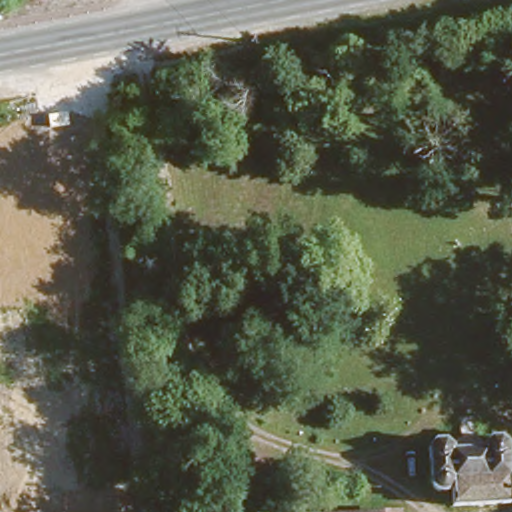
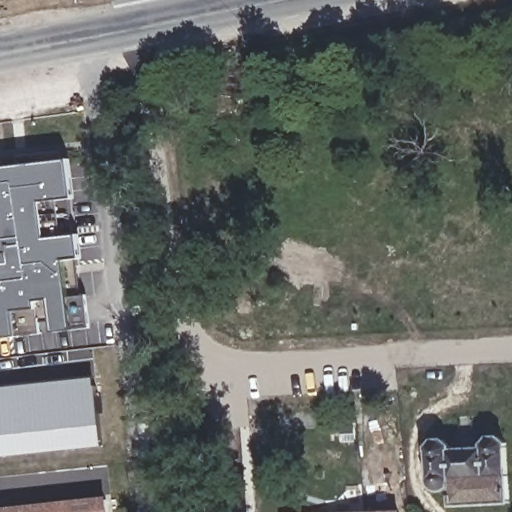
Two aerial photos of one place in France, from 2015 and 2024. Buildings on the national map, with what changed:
new [(64,161),(69,160),(74,196),(64,197),(69,237),(80,236),(82,258),(71,259),(79,297),(87,296),(91,328),(76,330),(55,332),(54,318),(37,321),(39,334),(19,336),(0,338),(0,160),(62,152),(64,161)]
new [(98,443),(0,452),(0,385),(90,376),(98,443)]
unchanged [(478,422),(478,439),(490,450),(493,438),(500,438),(507,448),(509,507),(451,510),(451,490),(440,494),(432,493),(430,489),(427,455),(433,440),(447,439),(460,441),(462,433),(462,425),(461,422),(478,422)]
new [(112,512),(0,512),(0,508),(110,496),(112,512)]

